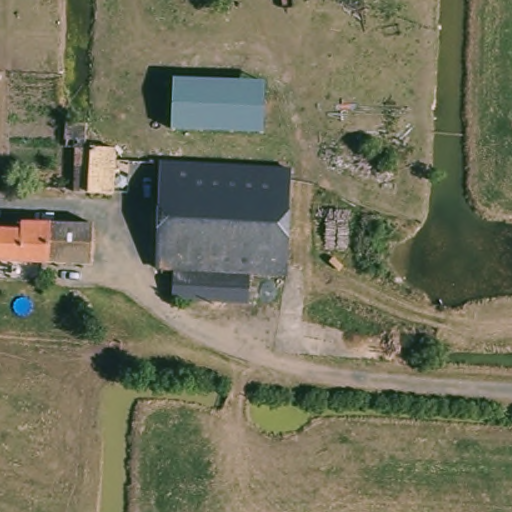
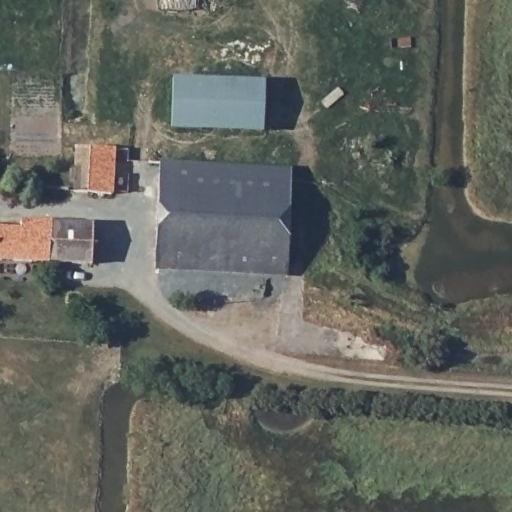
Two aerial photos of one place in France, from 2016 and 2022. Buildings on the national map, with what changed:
unchanged [(262,79),(262,129),(171,126),(172,75),(262,79)]
unchanged [(72,171),(73,154),(66,153),(67,114),(79,114),(89,114),(87,140),(110,142),(107,190),(71,189),(72,171)]
unchanged [(161,162),(290,169),(286,273),(250,271),(173,268),(155,267),(161,162)]
unchanged [(20,222),(21,216),(93,220),(91,260),(0,257),(0,220),(20,222)]
unchanged [(250,271),(249,301),(249,305),(172,301),(173,268),(250,271)]

